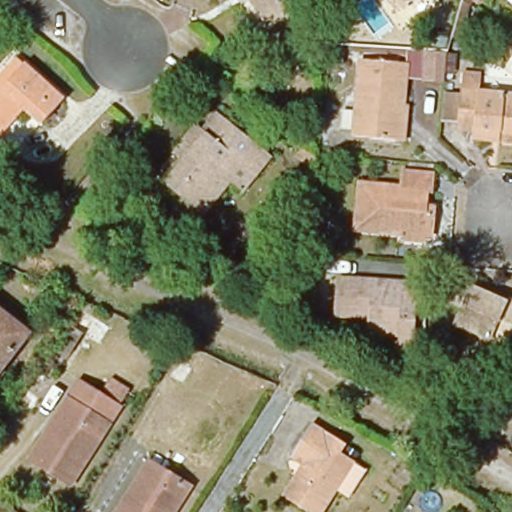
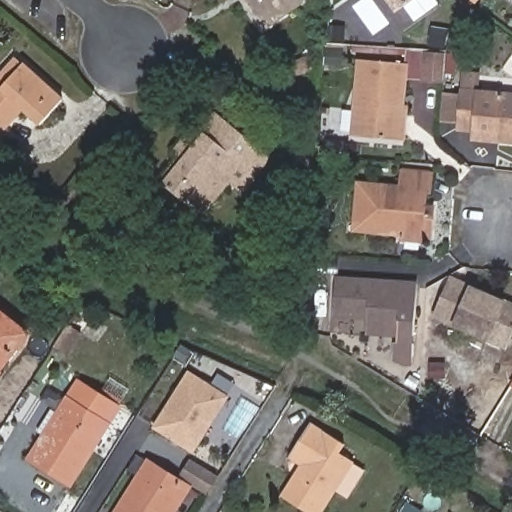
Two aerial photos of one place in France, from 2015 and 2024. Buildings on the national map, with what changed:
unchanged [(293,4),(262,25),(245,0),(290,0),(293,4)]
unchanged [(396,8),(391,0),(407,0),(396,8)]
unchanged [(441,50),(440,78),(421,77),(423,49),(441,50)]
unchanged [(401,140),(388,139),(350,136),(356,58),(401,62),(397,106),(403,106),(401,140)]
unchanged [(24,108),(0,134),(0,78),(17,60),(23,65),(62,100),(40,124),(24,108)]
unchanged [(470,125),(454,124),(457,87),(512,91),(512,139),(494,138),(469,136),(470,125)]
unchanged [(232,188),(206,219),(166,186),(185,165),(176,158),(199,129),(208,137),(222,120),(275,161),(258,181),(245,197),(232,188)]
unchanged [(357,222),(358,216),(351,215),(355,181),(397,184),(398,168),(426,171),(425,188),(420,187),(418,210),(428,211),(427,228),(357,222)]
unchanged [(512,303),(512,325),(505,343),(452,323),(467,285),(512,303)]
unchanged [(408,372),(401,372),(390,365),(390,350),(395,350),(395,343),(363,340),(365,326),(330,323),(334,286),(415,293),(408,372)]
unchanged [(0,371),(0,310),(30,333),(0,371)]
new [(154,426),(189,370),(230,396),(194,452),(154,426)]
unchanged [(72,381),(93,393),(115,406),(105,423),(67,485),(24,458),(62,398),(72,381)]
unchanged [(286,461),(312,426),(340,445),(333,456),(361,472),(348,493),(341,490),(327,512),(299,512),(277,497),(296,468),(286,461)]
new [(189,459),(214,476),(205,490),(180,474),(189,459)]
unchanged [(187,491),(174,512),(114,512),(144,465),(187,491)]

